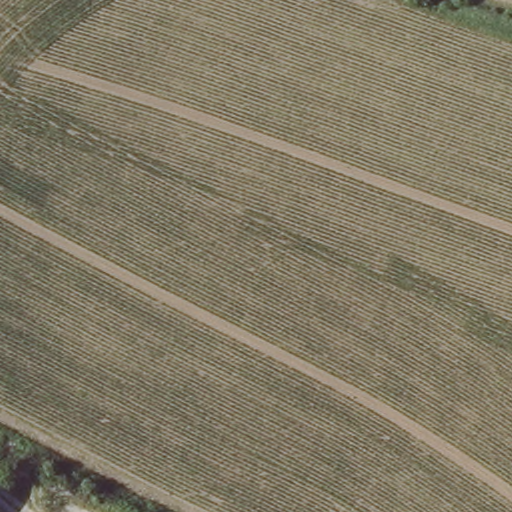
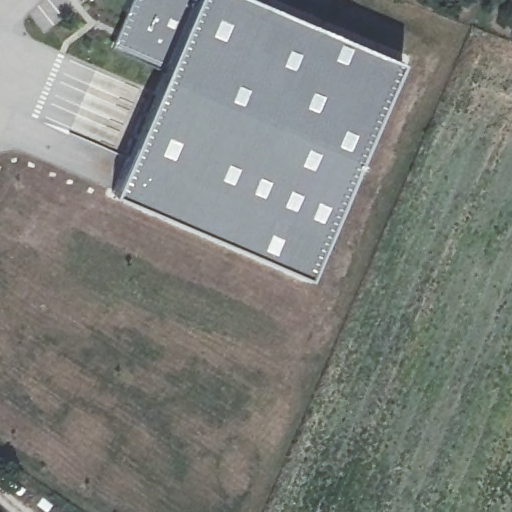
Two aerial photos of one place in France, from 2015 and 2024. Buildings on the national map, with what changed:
new [(120,45),(139,0),(262,0),(410,63),(316,281),(119,196),(174,67),(120,45)]

